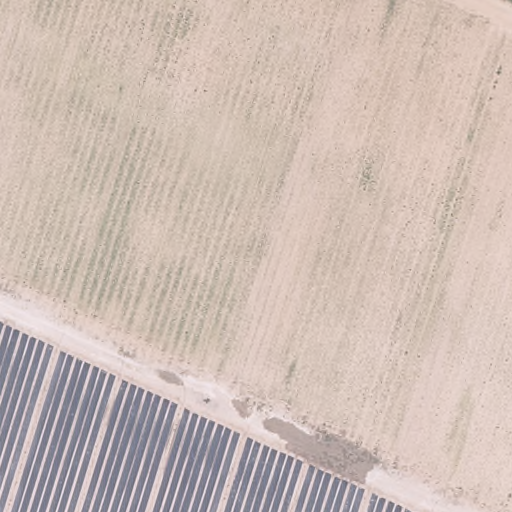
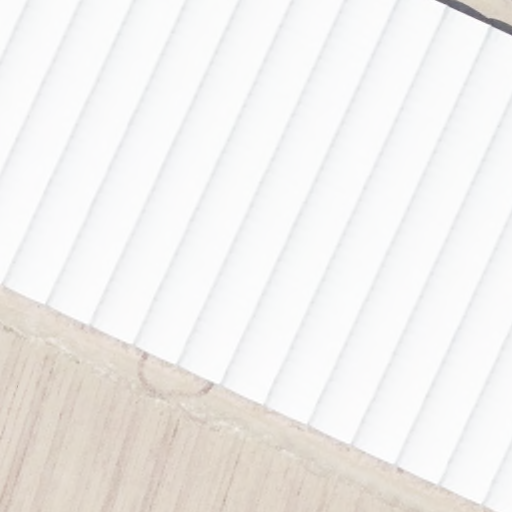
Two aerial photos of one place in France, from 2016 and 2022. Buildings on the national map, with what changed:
new [(0,285),(0,0),(434,0),(512,36),(512,512),(498,512),(0,285)]

